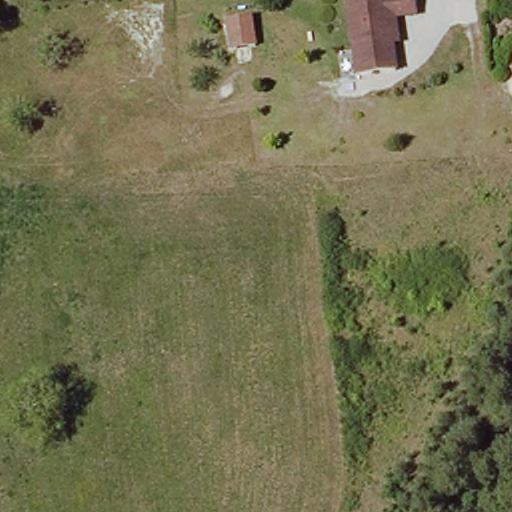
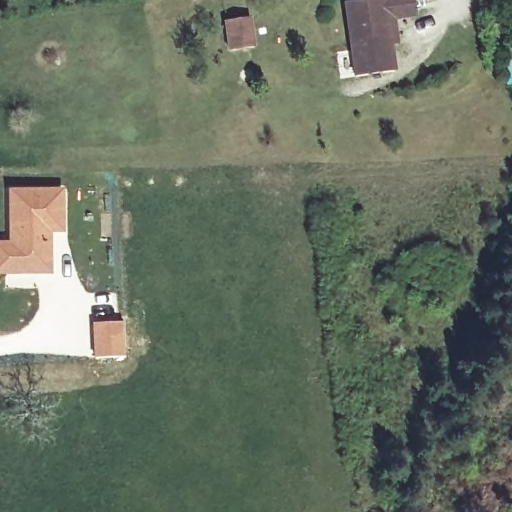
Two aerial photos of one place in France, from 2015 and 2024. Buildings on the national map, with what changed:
unchanged [(358,79),(349,6),(389,0),(419,0),(422,17),(392,21),(399,72),(358,79)]
unchanged [(224,29),(233,28),(249,25),(253,55),(237,57),(229,58),(224,29)]
new [(6,240),(5,188),(64,186),(65,234),(52,234),(53,275),(0,275),(0,240),(6,240)]
new [(124,320),(126,355),(94,357),(91,322),(124,320)]

